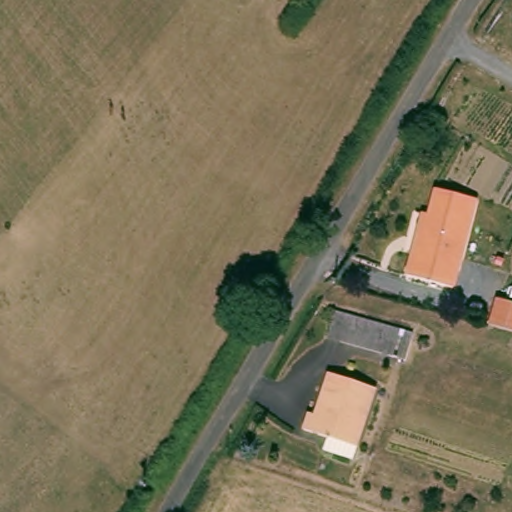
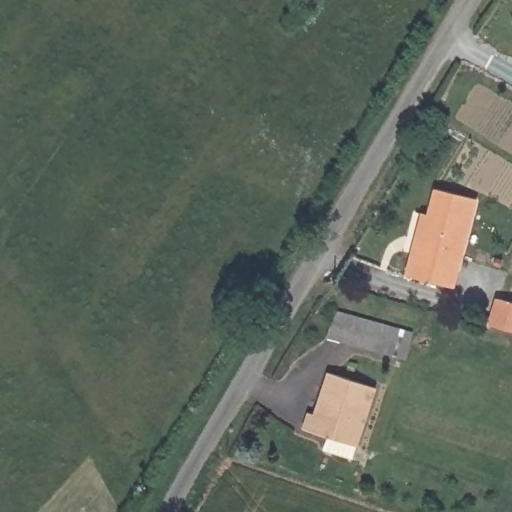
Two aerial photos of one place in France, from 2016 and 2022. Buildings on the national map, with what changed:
unchanged [(455,285),(409,271),(420,232),(426,211),(433,213),(440,186),(479,197),(455,285)]
unchanged [(512,301),(512,326),(505,323),(512,301)]
unchanged [(405,330),(397,357),(319,335),(327,309),(405,330)]
unchanged [(328,450),(331,439),(308,431),(313,414),(318,416),(331,374),(378,389),(359,448),(356,459),(328,450)]

